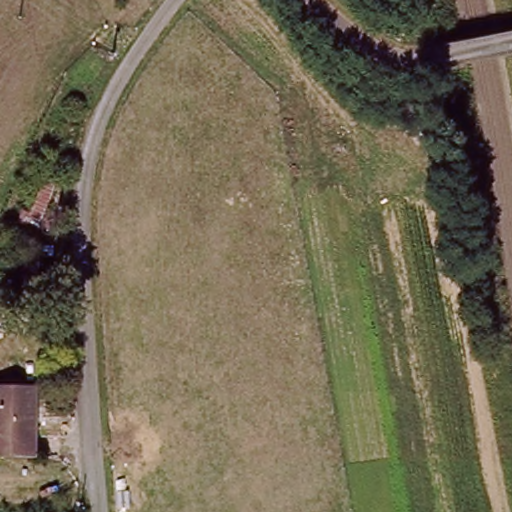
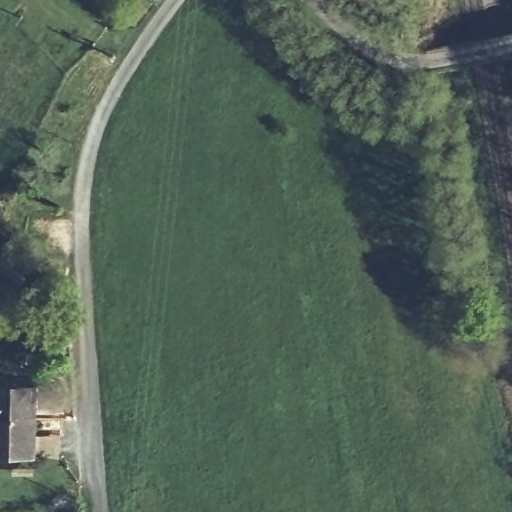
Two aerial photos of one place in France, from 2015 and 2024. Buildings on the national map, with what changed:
unchanged [(35,388),(32,455),(0,453),(0,386),(35,388)]

